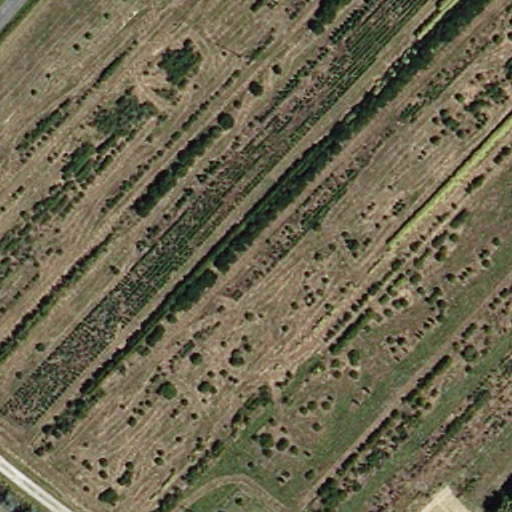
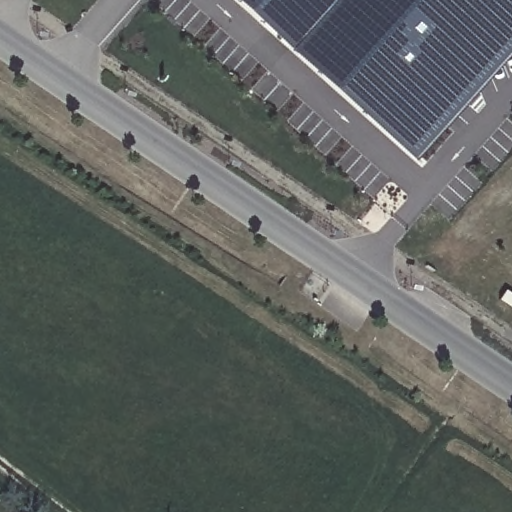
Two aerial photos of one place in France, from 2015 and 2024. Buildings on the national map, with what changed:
new [(512,38),(512,58),(425,162),(231,0),(259,0),(426,140),(512,38)]
new [(259,0),(512,0),(512,38),(426,140),(259,0)]
new [(506,289),(512,294),(512,308),(499,299),(506,289)]

